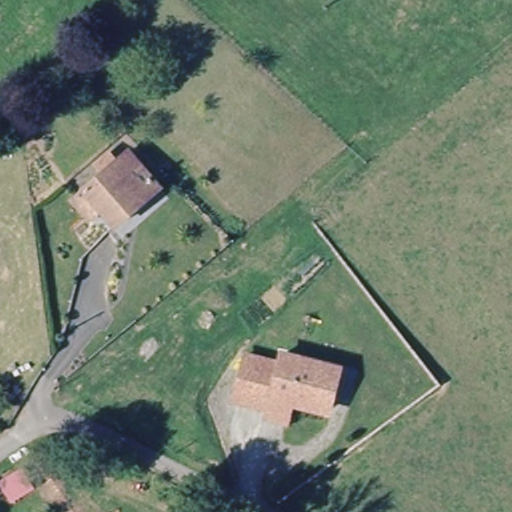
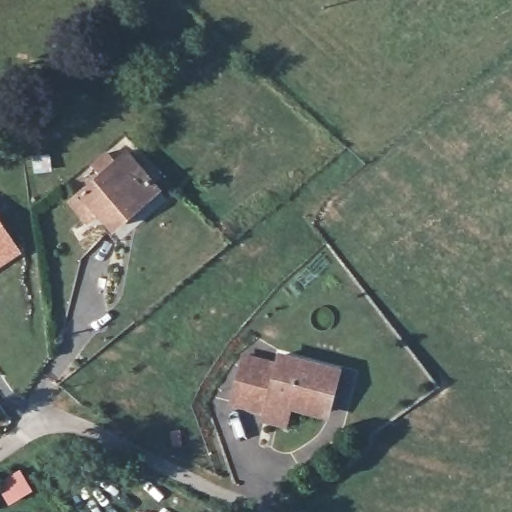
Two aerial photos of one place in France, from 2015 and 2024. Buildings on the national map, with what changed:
unchanged [(85,210),(97,198),(136,158),(167,188),(128,229),(114,215),(101,227),(85,210)]
new [(0,261),(0,222),(17,249),(0,261)]
unchanged [(267,417),(268,409),(236,402),(241,379),(246,354),(281,363),(283,354),(338,367),(327,410),(292,402),(287,422),(267,417)]
unchanged [(42,489),(12,505),(0,485),(0,482),(30,465),(42,489)]

